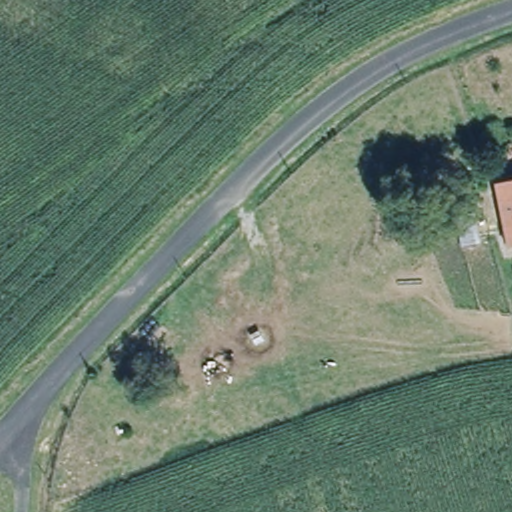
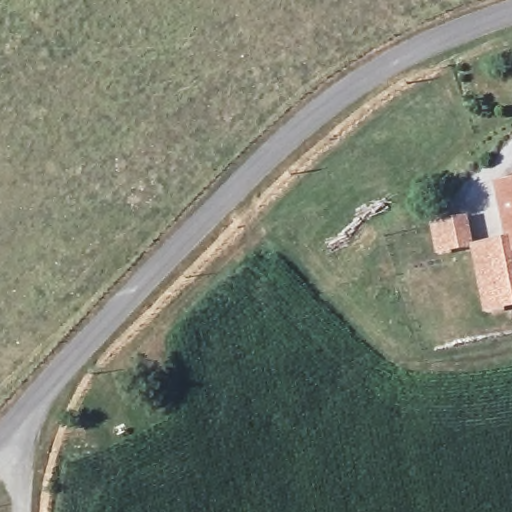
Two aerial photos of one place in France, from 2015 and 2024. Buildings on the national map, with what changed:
new [(470,248),(435,255),(429,223),(468,216),(474,245),(504,238),(494,183),(512,180),(512,308),(483,313),(470,248)]
demolished [(500,182),(512,180),(512,241),(509,241),(500,182)]

